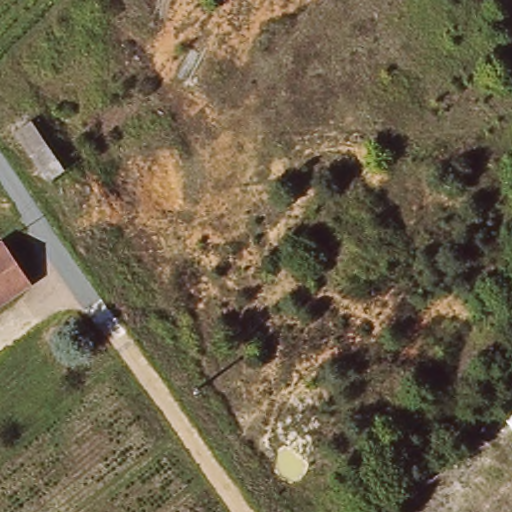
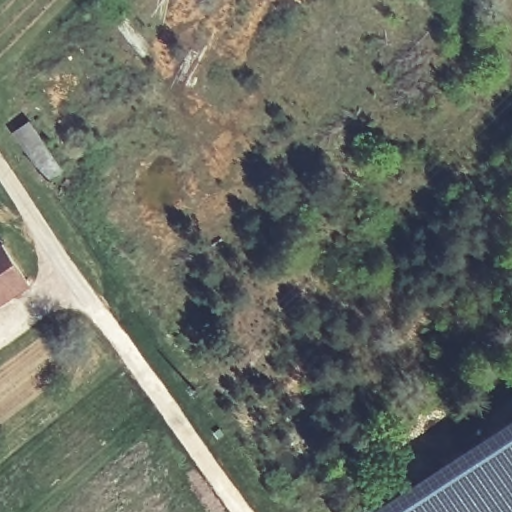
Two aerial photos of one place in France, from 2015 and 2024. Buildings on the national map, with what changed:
unchanged [(65,171),(49,181),(15,131),(31,121),(65,171)]
unchanged [(33,287),(0,309),(0,249),(5,246),(33,287)]
new [(508,423),(512,420),(512,512),(367,512),(380,503),(508,423)]

